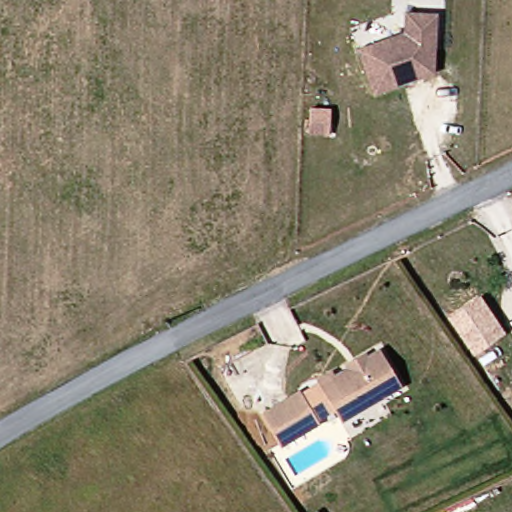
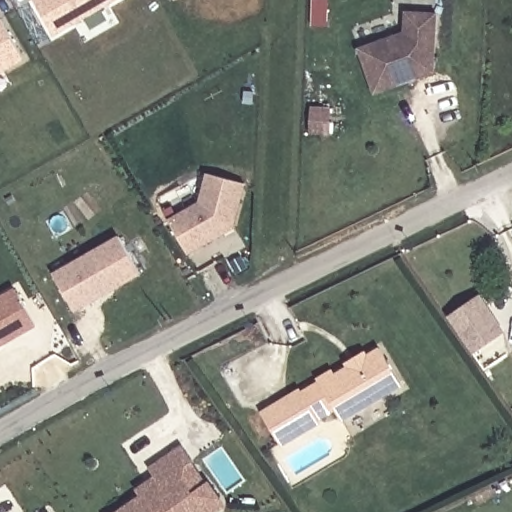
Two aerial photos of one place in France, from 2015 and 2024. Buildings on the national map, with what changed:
new [(34,0),(114,0),(54,35),(34,0)]
unchanged [(437,11),(433,70),(375,91),(359,45),(405,30),(406,9),(437,11)]
new [(0,19),(23,59),(0,72),(0,19)]
new [(187,253),(169,220),(200,203),(207,174),(245,184),(232,228),(224,233),(187,253)]
new [(119,237),(140,273),(74,311),(54,275),(119,237)]
new [(15,290),(35,325),(0,345),(0,298),(15,290)]
new [(478,297),(503,332),(472,355),(447,319),(478,297)]
unchanged [(400,387),(340,423),(315,384),(330,375),(333,378),(377,351),(400,387)]
unchanged [(318,415),(278,440),(260,410),(299,385),(318,415)]
new [(160,484),(149,470),(182,446),(193,461),(190,463),(205,484),(222,507),(215,512),(119,512),(160,484)]

